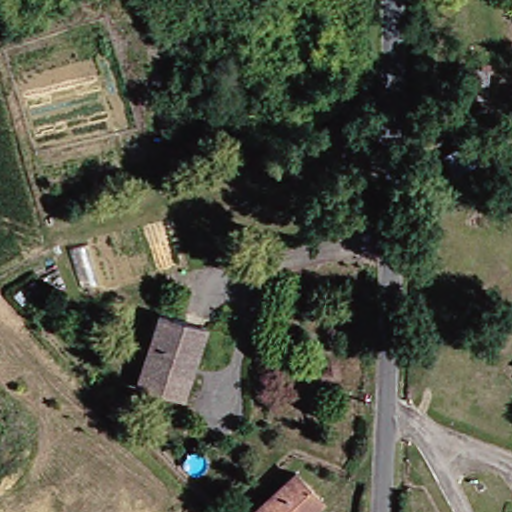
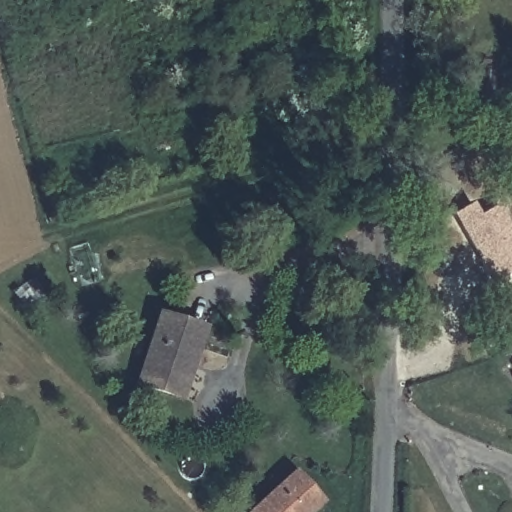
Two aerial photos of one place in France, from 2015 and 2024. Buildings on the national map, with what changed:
unchanged [(487,98),(467,97),(470,67),(483,67),(483,62),(490,62),(487,98)]
unchanged [(454,171),(443,154),(475,137),(485,154),(454,171)]
new [(500,204),(512,224),(512,274),(495,284),(454,214),(473,203),(481,215),(500,204)]
unchanged [(171,395),(139,384),(160,313),(205,327),(195,363),(184,398),(171,395)]
unchanged [(295,473),(322,502),(312,512),(253,512),(295,473)]

